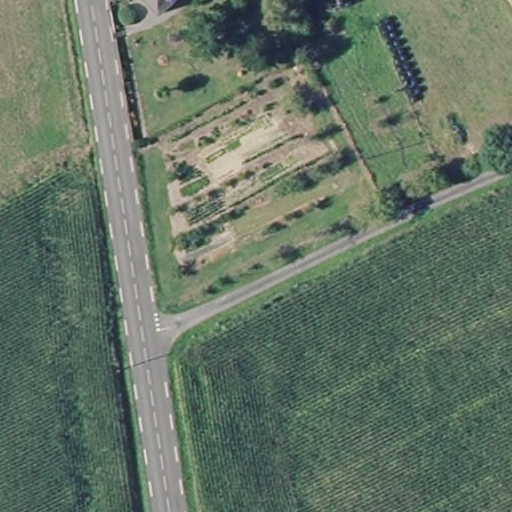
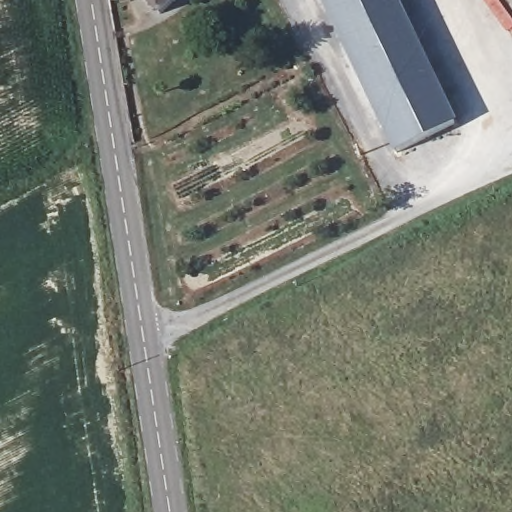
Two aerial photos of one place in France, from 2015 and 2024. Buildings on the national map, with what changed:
unchanged [(144,0),(175,0),(160,15),(144,0)]
new [(396,154),(323,0),(400,0),(457,123),(396,154)]

